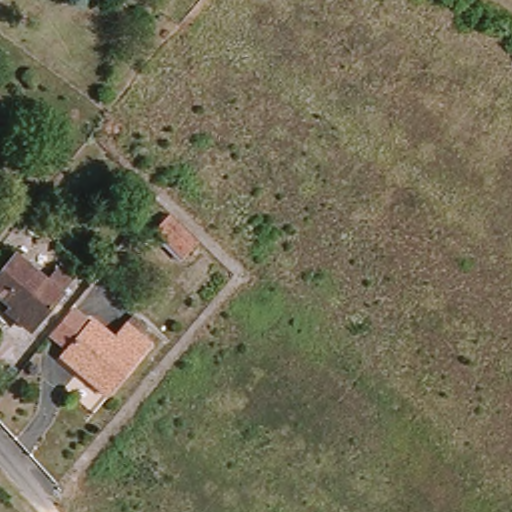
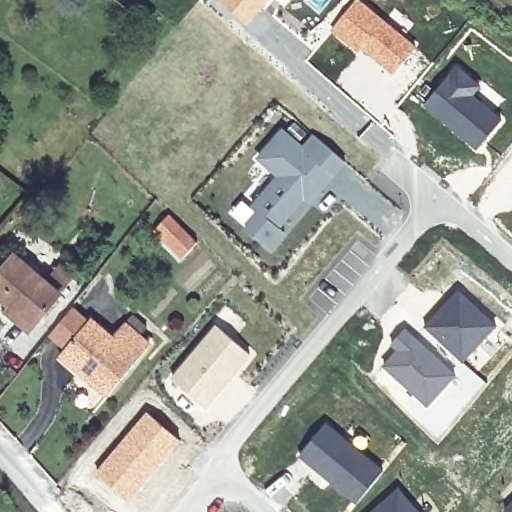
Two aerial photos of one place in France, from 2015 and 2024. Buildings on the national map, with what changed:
new [(247,25),(219,0),(269,0),(247,25)]
new [(330,30),(354,1),(382,23),(394,7),(414,23),(400,40),(412,49),(394,74),(361,47),(357,51),(330,30)]
new [(456,63),(481,84),(475,94),(502,118),(475,150),(420,105),(456,63)]
new [(314,203),(288,232),(294,237),(279,254),(256,233),(270,217),(255,204),(281,173),(261,155),(285,128),(305,146),(317,133),(354,167),(343,180),(329,196),(319,208),(314,203)]
unchanged [(35,202),(38,204),(26,219),(19,214),(31,199),(35,202)]
unchanged [(199,243),(181,260),(153,231),(170,215),(199,243)]
unchanged [(15,257),(59,294),(32,327),(0,301),(0,275),(15,257)]
new [(458,287),(497,325),(463,362),(423,325),(458,287)]
unchanged [(62,358),(65,356),(49,343),(72,316),(87,329),(90,326),(112,345),(124,330),(148,350),(106,400),(78,377),(60,362),(62,358)]
new [(218,326),(251,354),(206,407),(174,379),(218,326)]
new [(395,350),(389,344),(405,326),(457,375),(427,407),(381,365),(395,350)]
new [(147,410),(182,440),(127,501),(93,473),(147,410)]
new [(326,420),(384,469),(355,504),(296,456),(326,420)]
new [(421,512),(368,512),(397,485),(421,512)]
new [(512,512),(504,512),(502,510),(512,500),(512,512)]

